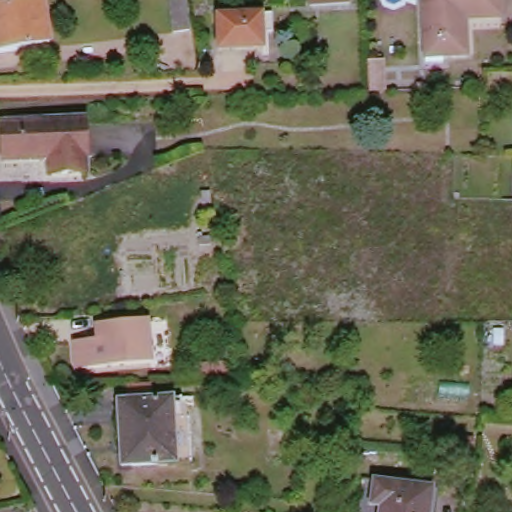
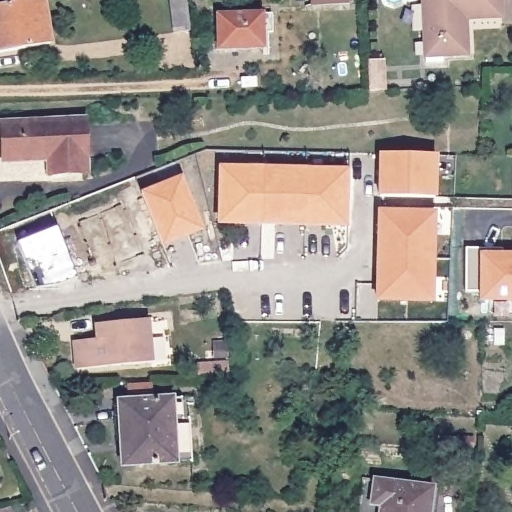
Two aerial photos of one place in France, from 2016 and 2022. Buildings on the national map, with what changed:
unchanged [(42,0),(48,43),(0,51),(0,6),(36,0),(42,0)]
unchanged [(184,0),(187,28),(173,31),(170,0),(184,0)]
unchanged [(352,0),(343,0),(343,5),(309,6),(309,0),(352,0)]
unchanged [(428,56),(427,44),(425,0),(501,0),(502,16),(462,18),(462,24),(467,24),(469,54),(446,56),(446,63),(429,63),(428,56)]
unchanged [(217,15),(260,14),(262,46),(218,47),(217,15)]
unchanged [(374,59),(375,89),(365,89),(363,60),(374,59)]
unchanged [(53,153),(7,155),(6,117),(88,115),(89,165),(53,167),(53,153)]
new [(380,153),(433,153),(432,196),(379,196),(380,153)]
new [(220,168),(350,171),(349,226),(220,223),(220,168)]
new [(180,178),(201,230),(161,245),(140,194),(180,178)]
new [(432,213),(432,300),(378,299),(378,211),(432,213)]
new [(58,226),(77,279),(60,286),(35,289),(17,242),(58,226)]
new [(512,248),(512,301),(480,301),(480,291),(466,291),(467,248),(512,248)]
unchanged [(75,345),(103,342),(102,327),(147,324),(151,366),(76,372),(75,345)]
unchanged [(197,363),(225,361),(226,372),(197,374),(197,363)]
unchanged [(129,405),(128,390),(150,389),(151,404),(171,403),(175,466),(122,469),(118,405),(129,405)]
unchanged [(455,473),(457,455),(471,456),(470,474),(455,473)]
unchanged [(380,507),(380,504),(377,504),(375,503),(374,503),(371,501),(373,489),(375,480),(431,487),(428,512),(380,507)]
unchanged [(428,512),(380,512),(380,507),(428,512)]

